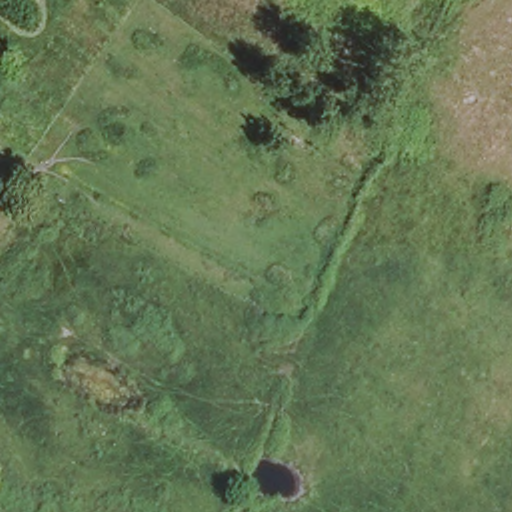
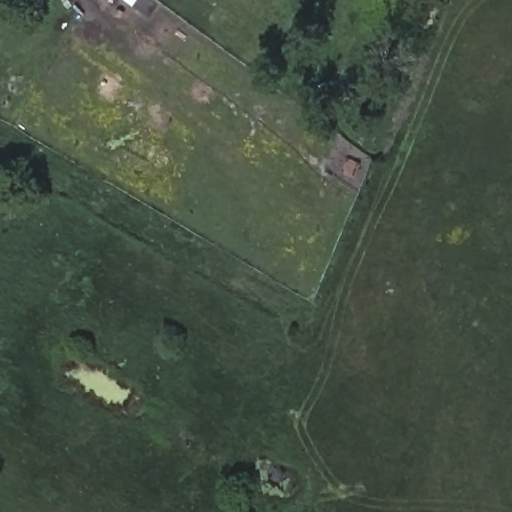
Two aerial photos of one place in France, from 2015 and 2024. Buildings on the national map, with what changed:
unchanged [(37,204),(19,190),(25,180),(45,192),(37,204)]
unchanged [(2,202),(0,205),(0,200),(2,202)]

